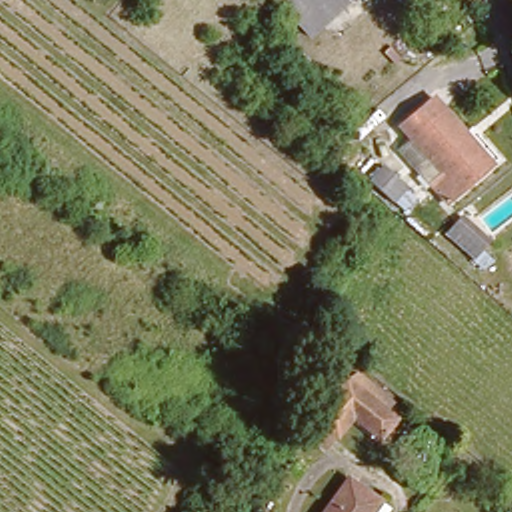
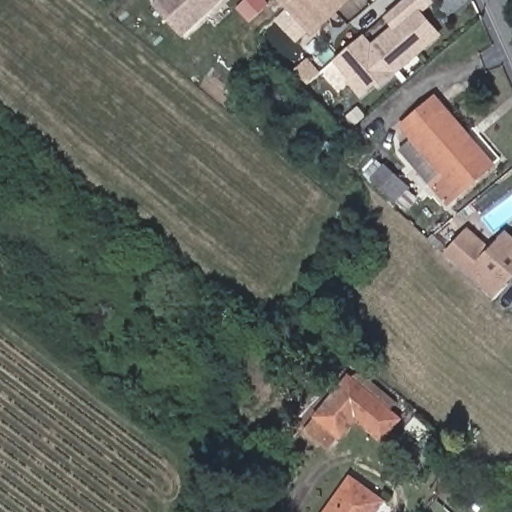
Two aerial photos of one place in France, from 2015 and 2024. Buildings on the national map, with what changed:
new [(182,38),(152,5),(157,0),(224,0),(182,38)]
unchanged [(308,33),(279,0),(343,0),(308,33)]
new [(422,12),(442,35),(395,75),(378,90),(375,86),(360,99),(347,83),(350,79),(333,61),(363,35),(371,43),(392,25),(383,17),(403,0),(432,0),(434,3),(422,12)]
unchanged [(414,138),(402,123),(436,94),(469,133),(492,161),(487,165),(446,200),(430,180),(403,148),(414,138)]
unchanged [(402,183),(388,198),(365,175),(379,160),(402,183)]
demolished [(466,259),(445,239),(459,225),(480,245),(466,259)]
new [(443,255),(467,228),(490,248),(506,230),(512,235),(512,279),(494,299),(443,255)]
unchanged [(373,440),(347,419),(331,437),(328,435),(309,420),(307,418),(338,379),(353,375),(390,405),(382,414),(389,420),(373,440)]
unchanged [(328,435),(300,471),(281,455),(309,420),(328,435)]
unchanged [(324,512),(348,477),(381,500),(372,512),(324,512)]

